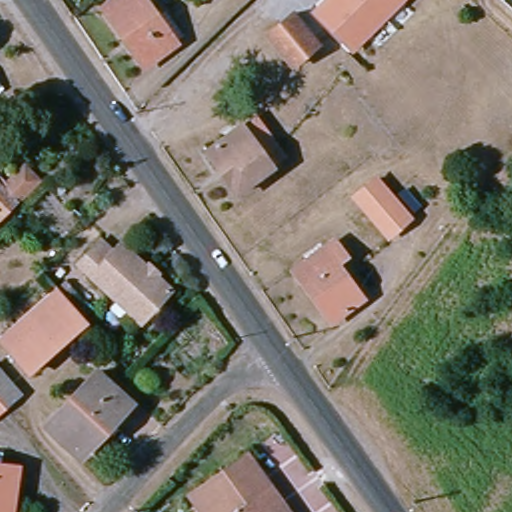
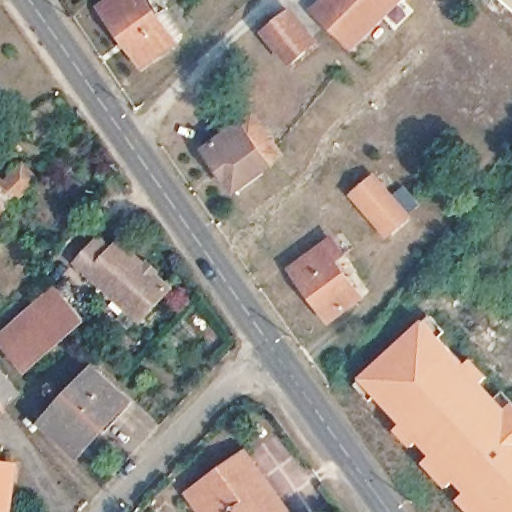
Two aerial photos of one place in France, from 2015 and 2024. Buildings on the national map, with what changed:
unchanged [(152,27),(160,22),(174,44),(138,67),(100,14),(119,0),(133,0),(152,27)]
unchanged [(351,55),(313,19),(331,0),(358,0),(370,12),(382,23),(382,24),(377,30),(372,34),(351,55)]
unchanged [(382,24),(382,23),(370,12),(358,0),(405,0),(382,24)]
new [(512,4),(507,0),(512,0),(512,4)]
unchanged [(292,13),(317,44),(292,65),(267,34),(292,13)]
unchanged [(267,164),(270,168),(236,191),(207,150),(255,117),(277,149),(281,155),(278,156),(267,164)]
unchanged [(20,167),(33,180),(0,211),(0,185),(20,167)]
unchanged [(407,216),(387,235),(353,195),(374,179),(407,216)]
unchanged [(301,258),(312,250),(316,255),(328,247),(338,261),(328,267),(354,303),(324,325),(290,275),(305,265),(301,258)]
unchanged [(67,276),(89,252),(102,264),(110,255),(160,301),(131,333),(67,276)]
unchanged [(22,377),(0,351),(0,340),(52,292),(81,325),(22,377)]
new [(497,512),(472,512),(460,498),(467,491),(469,493),(446,468),(448,465),(412,426),(409,429),(377,395),(382,391),(367,375),(421,325),(432,315),(447,332),(440,337),(471,371),(468,374),(504,413),(493,401),(504,391),(512,400),(512,512),(497,512),(475,488),(497,512)]
new [(472,360),(488,377),(479,385),(468,374),(471,371),(466,365),(472,360)]
unchanged [(127,405),(75,461),(41,430),(94,373),(127,405)]
new [(367,375),(382,391),(377,395),(378,396),(372,401),(356,385),(367,375)]
unchanged [(8,398),(0,406),(0,389),(8,398)]
new [(403,423),(409,429),(412,426),(422,438),(414,446),(397,428),(403,423)]
new [(436,452),(448,465),(446,468),(457,480),(449,487),(426,461),(436,452)]
unchanged [(240,457),(280,512),(200,512),(187,494),(240,457)]
unchanged [(5,475),(0,507),(0,474),(5,475)]

